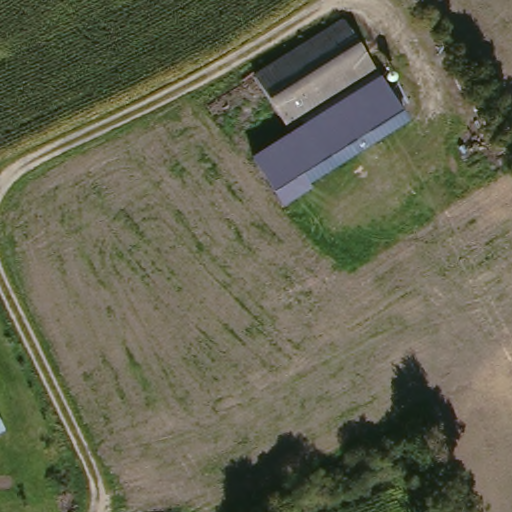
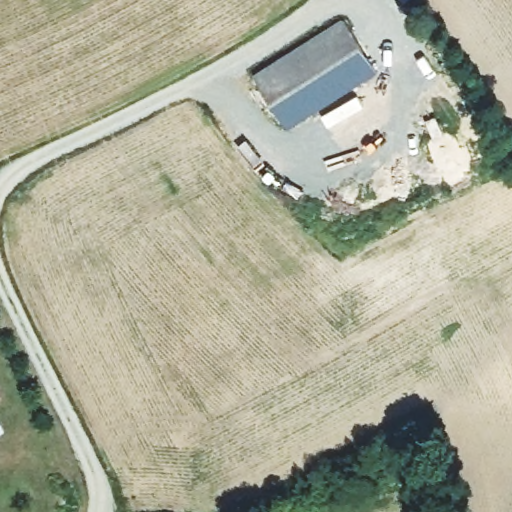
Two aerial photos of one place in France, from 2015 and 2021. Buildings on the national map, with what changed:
unchanged [(340,21),(375,73),(289,129),(255,77),(340,21)]
demolished [(409,123),(280,205),(249,156),(289,129),(375,73),(409,123)]
unchanged [(0,424),(3,431),(0,432),(0,424)]

